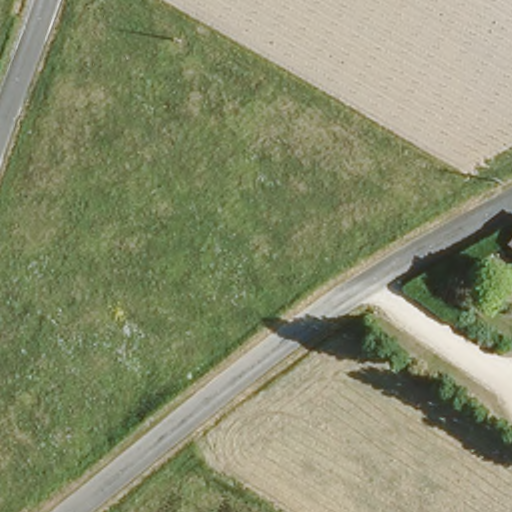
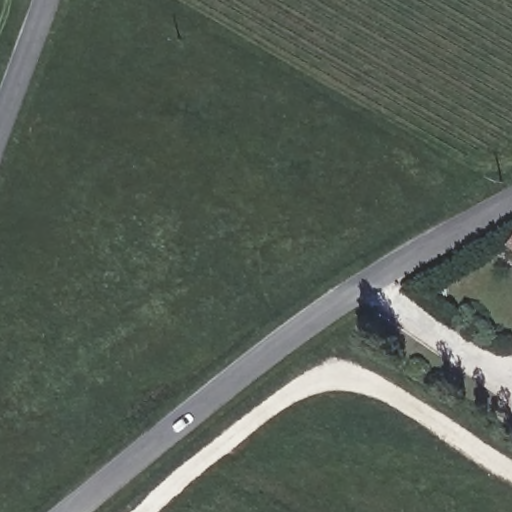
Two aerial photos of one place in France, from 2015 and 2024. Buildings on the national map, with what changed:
unchanged [(499,239),(512,223),(512,249),(499,239)]

